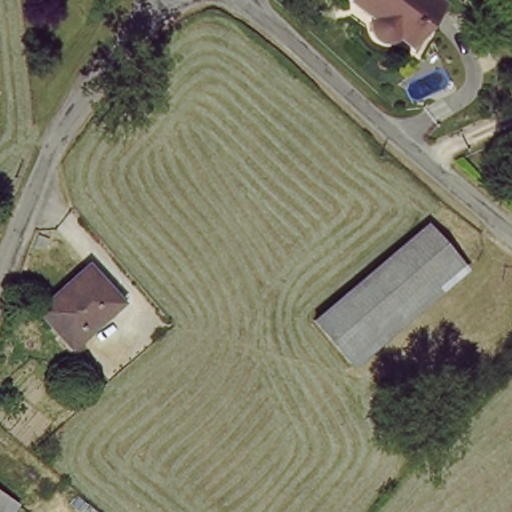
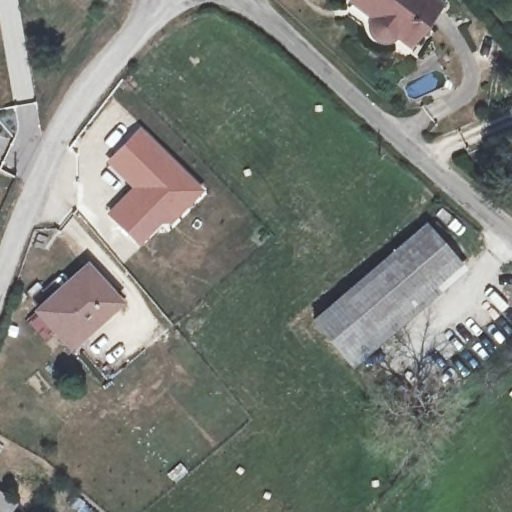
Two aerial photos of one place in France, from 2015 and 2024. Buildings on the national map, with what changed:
unchanged [(415,46),(405,39),(400,40),(389,39),(380,36),(377,18),(381,12),(369,0),(441,0),(447,6),(415,46)]
new [(141,125),(205,191),(170,226),(159,224),(137,244),(106,214),(130,187),(105,163),(141,125)]
unchanged [(426,226),(463,272),(355,368),(315,323),(426,226)]
unchanged [(81,267),(115,294),(73,347),(40,318),(81,267)]
unchanged [(5,512),(0,512),(0,500),(9,507),(5,512)]

